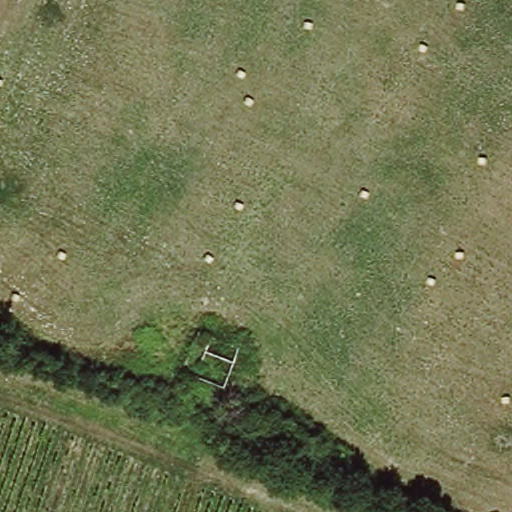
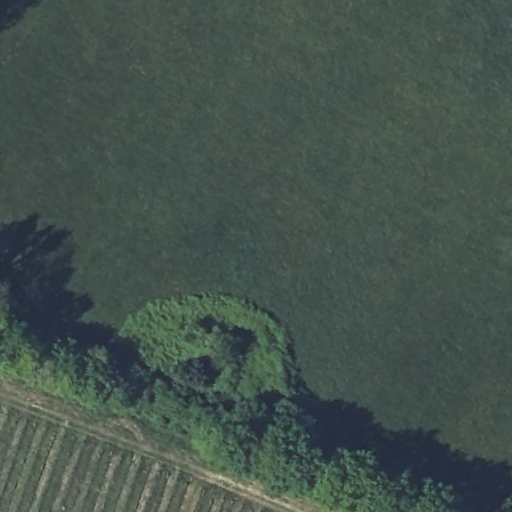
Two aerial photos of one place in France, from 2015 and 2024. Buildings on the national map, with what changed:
unchanged [(207,326),(231,335),(227,343),(245,351),(227,391),(187,376),(207,326)]

